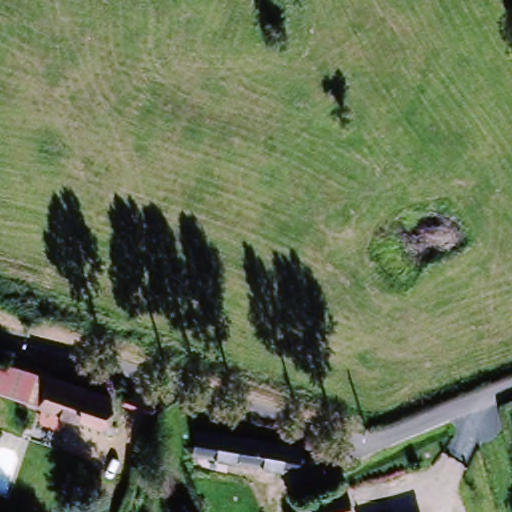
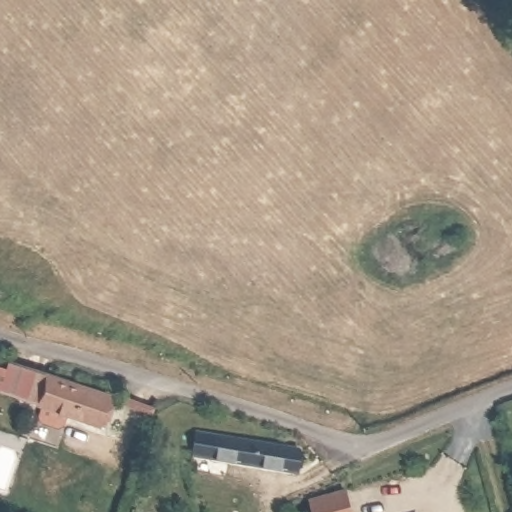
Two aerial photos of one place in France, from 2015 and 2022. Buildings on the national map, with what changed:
unchanged [(117,401),(107,431),(39,410),(10,401),(21,370),(57,382),(117,401)]
unchanged [(304,455),(299,481),(190,461),(197,435),(304,455)]
unchanged [(353,512),(316,512),(315,501),(350,495),(353,512)]

